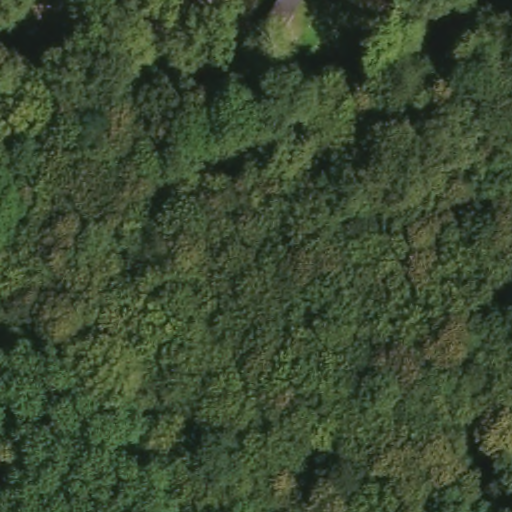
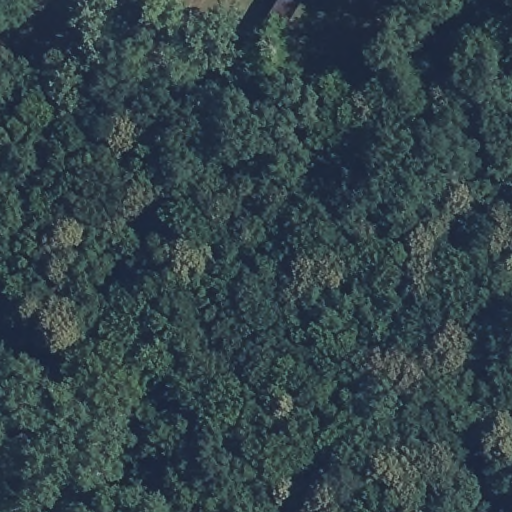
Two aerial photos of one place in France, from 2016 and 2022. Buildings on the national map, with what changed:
unchanged [(320,0),(299,35),(283,25),(298,0),(320,0)]

